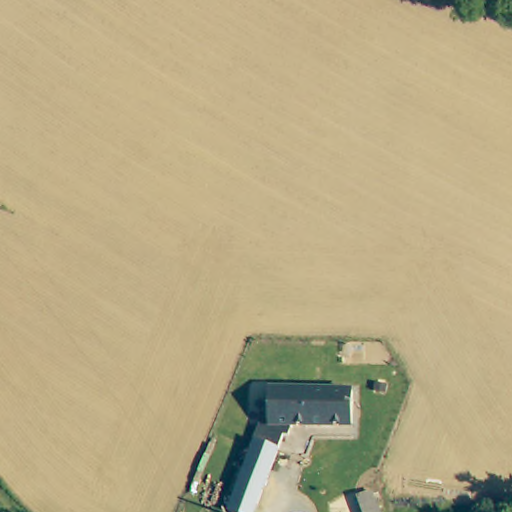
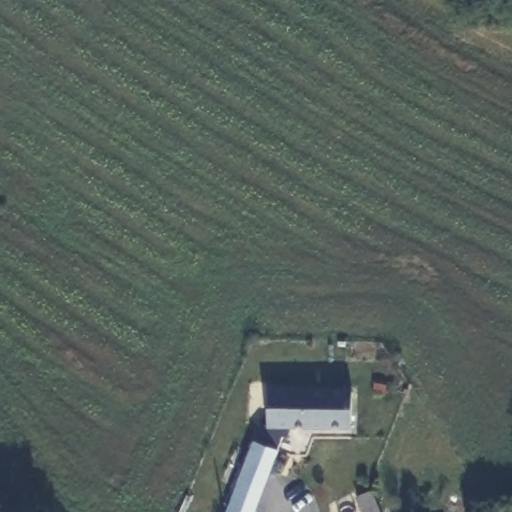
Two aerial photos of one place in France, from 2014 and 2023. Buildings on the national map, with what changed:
unchanged [(359,425),(271,426),(269,387),(309,387),(358,385),(359,425)]
unchanged [(265,491),(255,512),(227,512),(259,442),(281,451),(265,491)]
unchanged [(389,512),(372,512),(367,500),(381,495),(389,512)]

